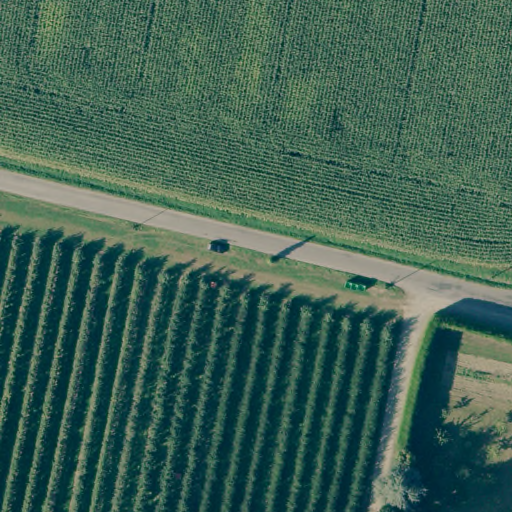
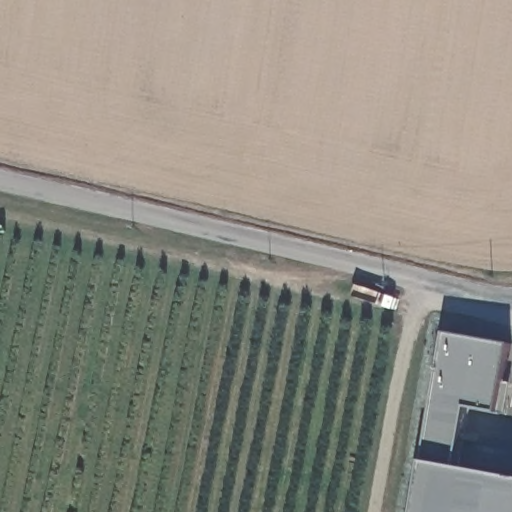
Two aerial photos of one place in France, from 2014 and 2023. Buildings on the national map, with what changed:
new [(416,512),(424,462),(445,333),(511,345),(498,413),(467,407),(456,467),(512,478),(512,512),(416,512)]

